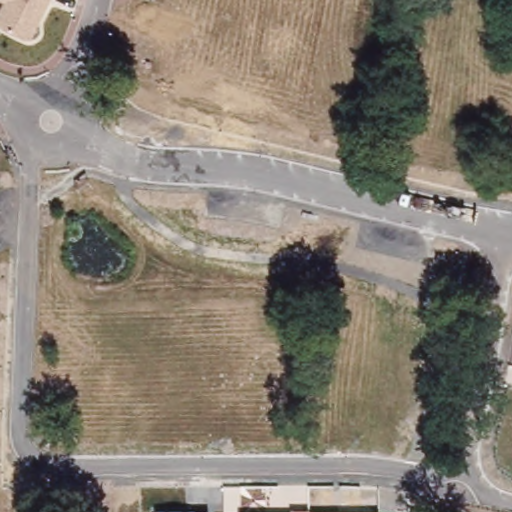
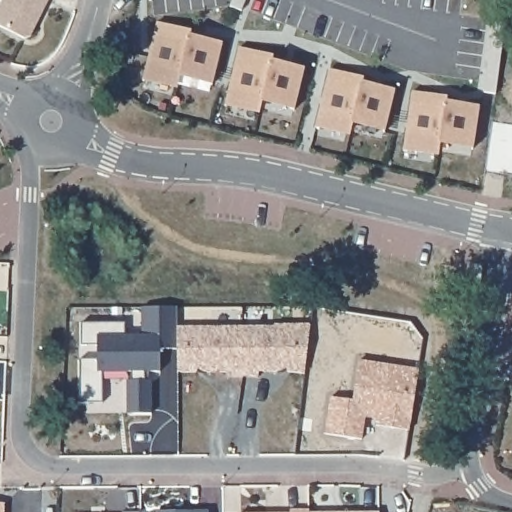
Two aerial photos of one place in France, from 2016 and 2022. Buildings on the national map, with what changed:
unchanged [(0,4),(2,0),(1,0),(48,0),(30,39),(0,25),(0,4)]
new [(493,18),(507,20),(502,54),(496,94),(483,92),(493,18)]
new [(157,22),(191,30),(190,35),(222,43),(212,85),(180,78),(177,89),(144,81),(157,22)]
new [(239,47),(273,55),(272,60),(304,68),(294,110),(262,103),(259,114),(225,105),(239,47)]
new [(330,69),(363,77),(362,82),(395,90),(385,132),(352,125),(350,135),(316,127),(330,69)]
new [(413,91),(447,96),(447,101),(480,106),(472,150),(440,145),(438,156),(404,150),(413,91)]
new [(160,350),(160,372),(151,372),(152,413),(127,412),(127,372),(102,372),(102,403),(81,403),(80,360),(97,360),(97,345),(82,345),(82,323),(124,324),(124,335),(143,335),(142,306),(177,307),(177,327),(177,349),(160,350)]
new [(177,349),(177,327),(274,326),(274,323),(310,324),(305,373),(259,372),(259,377),(227,377),(227,372),(177,372),(177,349)]
new [(3,512),(0,512),(0,503),(3,503),(3,512)]
unchanged [(156,511),(210,509),(210,512),(156,512),(156,511)]

